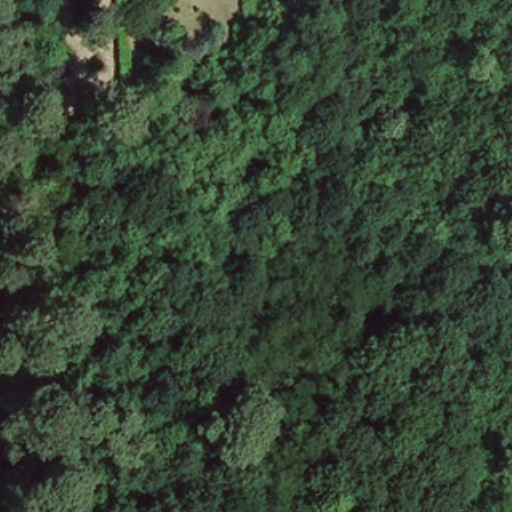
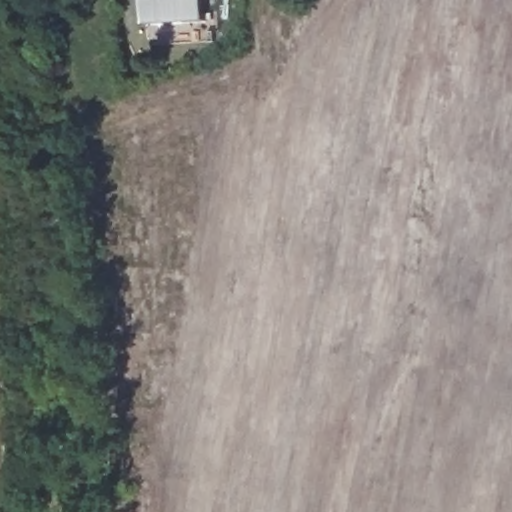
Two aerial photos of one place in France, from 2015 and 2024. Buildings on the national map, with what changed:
new [(147,24),(145,0),(203,0),(204,20),(147,24)]

